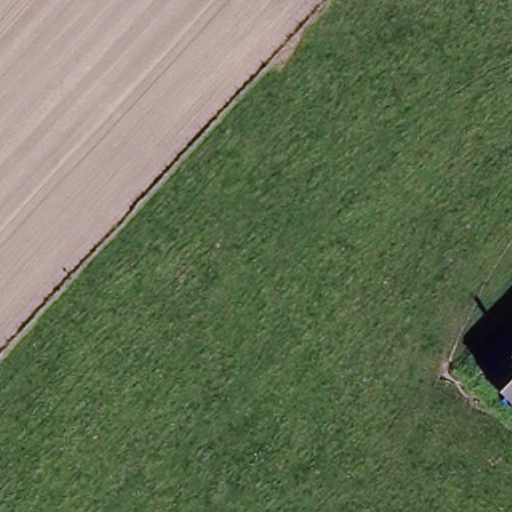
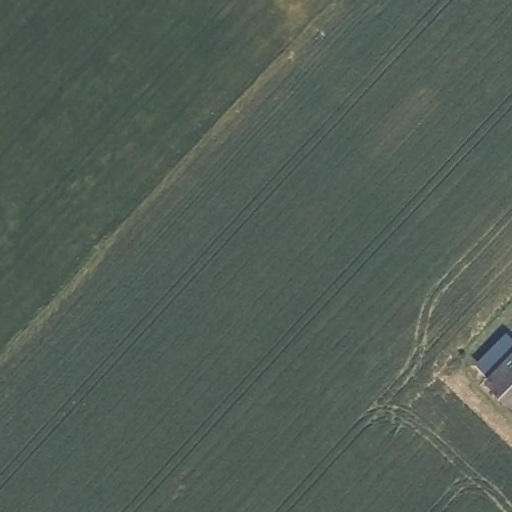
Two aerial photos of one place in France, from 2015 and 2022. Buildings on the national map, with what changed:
unchanged [(487,376),(512,350),(512,399),(487,376)]

